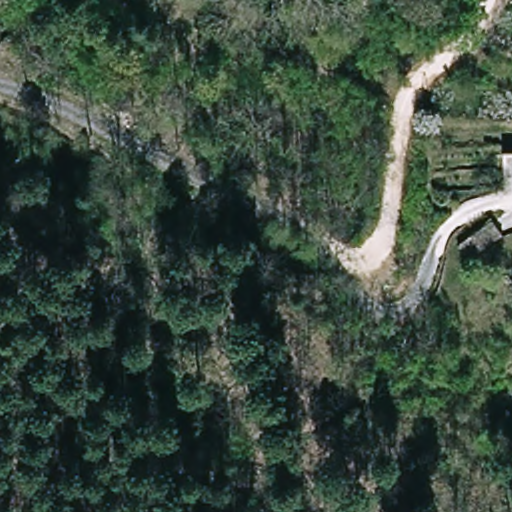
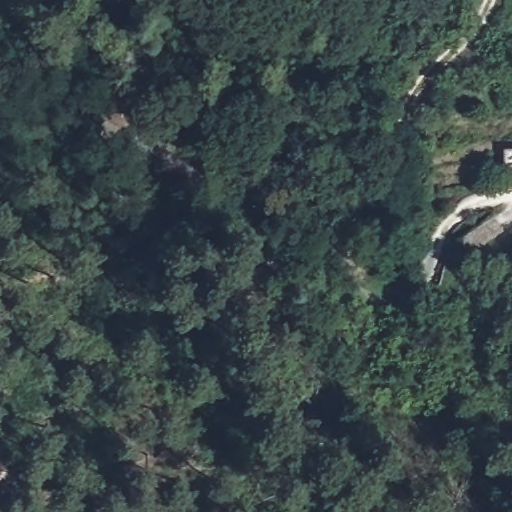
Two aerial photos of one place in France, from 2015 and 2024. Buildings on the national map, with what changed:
unchanged [(491,208),(504,223),(471,249),(459,234),(491,208)]

